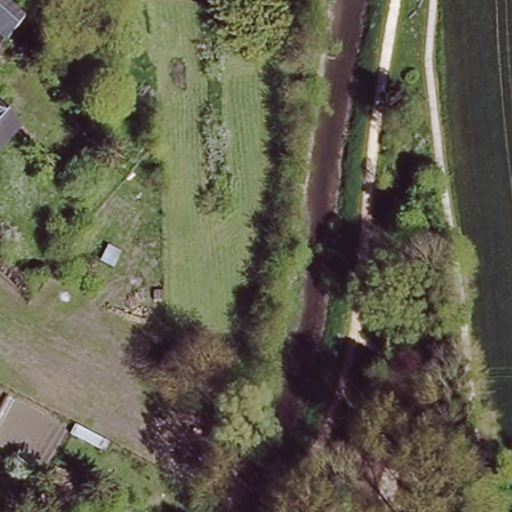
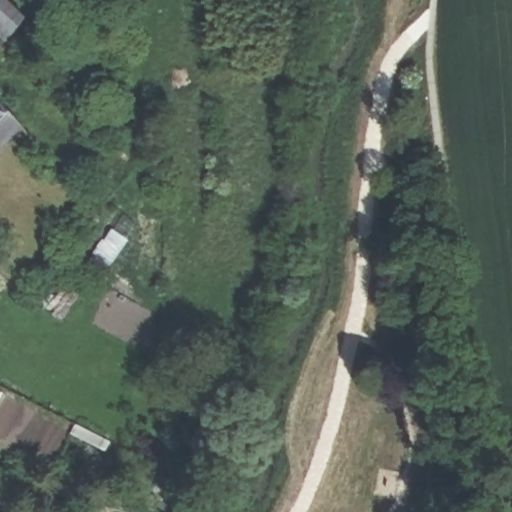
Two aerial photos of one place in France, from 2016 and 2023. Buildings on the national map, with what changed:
unchanged [(0,0),(11,0),(23,13),(4,35),(0,33),(0,0)]
unchanged [(0,52),(0,33),(4,35),(0,52)]
unchanged [(0,140),(0,107),(14,121),(0,140)]

